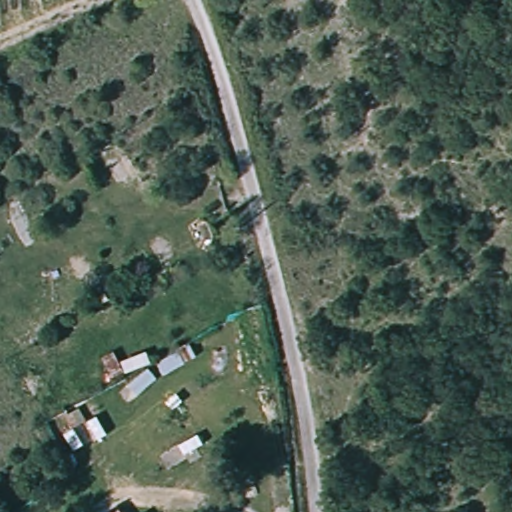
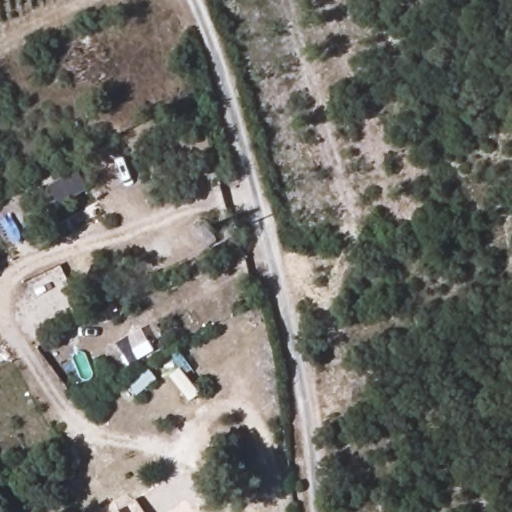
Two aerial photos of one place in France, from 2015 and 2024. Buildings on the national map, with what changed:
unchanged [(120,510),(121,512),(117,512),(120,510)]

